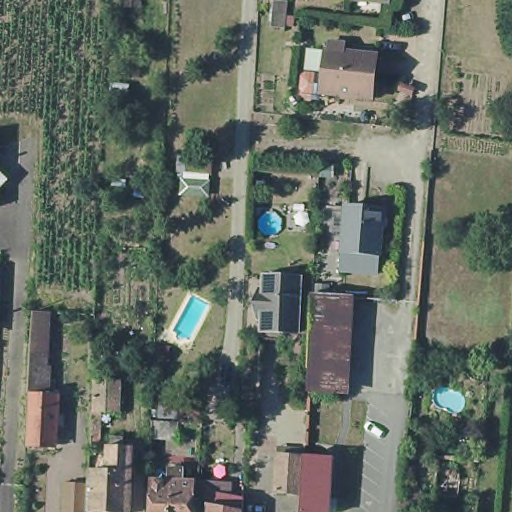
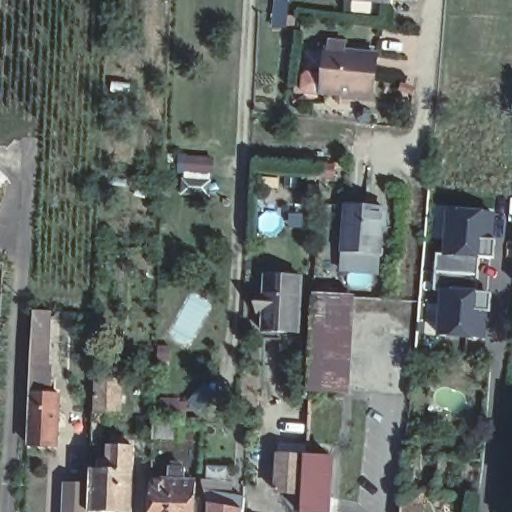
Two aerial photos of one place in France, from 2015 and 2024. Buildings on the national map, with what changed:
unchanged [(339,37),(354,39),(354,48),(386,51),(381,94),(334,90),(331,89),(336,47),(337,47),(338,47),(339,37)]
unchanged [(188,158),(211,159),(211,174),(186,172),(188,158)]
unchanged [(183,178),(209,180),(208,193),(183,191),(183,178)]
unchanged [(345,206),(383,209),(379,257),(377,274),(339,271),(341,254),(345,206)]
new [(494,211),(493,258),(476,256),(474,292),(488,294),(484,342),(433,337),(437,290),(432,290),(434,254),(441,255),(442,207),(494,211)]
unchanged [(264,291),(268,283),(273,284),(274,271),(311,273),(308,328),(271,326),(271,313),(264,313),(263,307),(264,291)]
unchanged [(334,285),(333,296),(321,295),(321,284),(334,285)]
unchanged [(316,296),(351,298),(347,391),(311,390),(316,296)]
unchanged [(36,336),(36,332),(51,332),(50,362),(53,363),(53,390),(63,390),(61,441),(31,440),(36,336)]
unchanged [(94,370),(121,371),(120,403),(93,402),(94,370)]
unchanged [(156,422),(183,424),(183,441),(156,440),(156,422)]
unchanged [(94,483),(95,466),(113,467),(113,443),(117,443),(118,433),(128,433),(128,443),(137,444),(136,510),(93,508),(94,483)]
demolished [(484,492),(474,491),(434,487),(439,447),(478,451),(476,480),(484,480),(484,492)]
unchanged [(286,456),(311,458),(310,495),(284,493),(286,456)]
unchanged [(343,459),(340,512),(310,512),(313,458),(343,459)]
demolished [(394,464),(410,465),(408,498),(391,498),(394,464)]
unchanged [(173,483),(173,470),(189,471),(189,483),(199,484),(198,512),(153,512),(154,482),(173,483)]
unchanged [(94,483),(93,508),(93,512),(68,512),(69,483),(94,483)]
unchanged [(211,501),(210,496),(206,483),(238,485),(236,498),(248,499),(247,512),(212,512),(214,501),(211,501)]
demolished [(430,491),(429,512),(408,512),(411,489),(430,491)]

